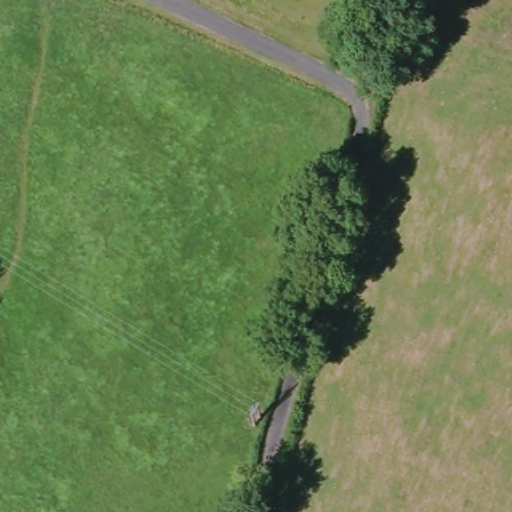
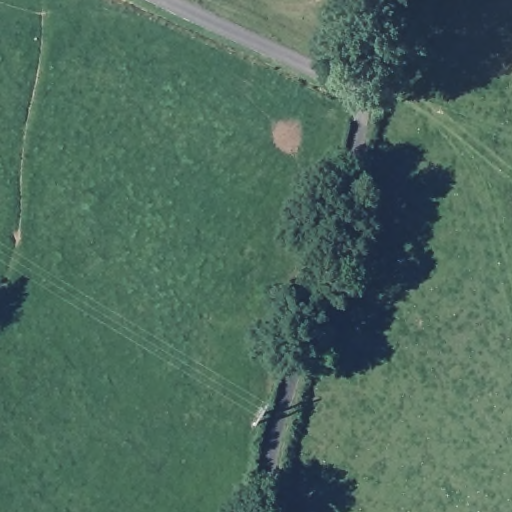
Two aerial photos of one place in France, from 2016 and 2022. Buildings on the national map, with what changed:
[]

